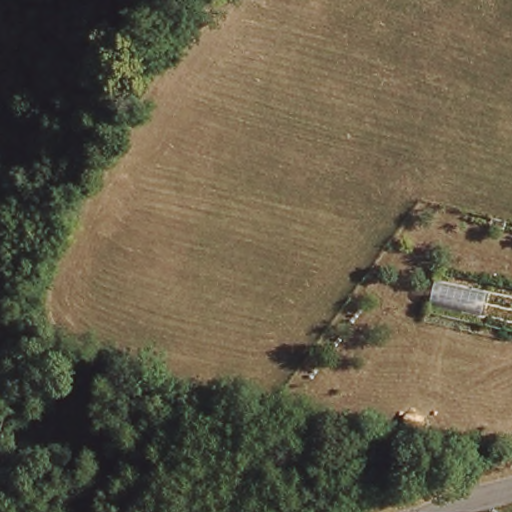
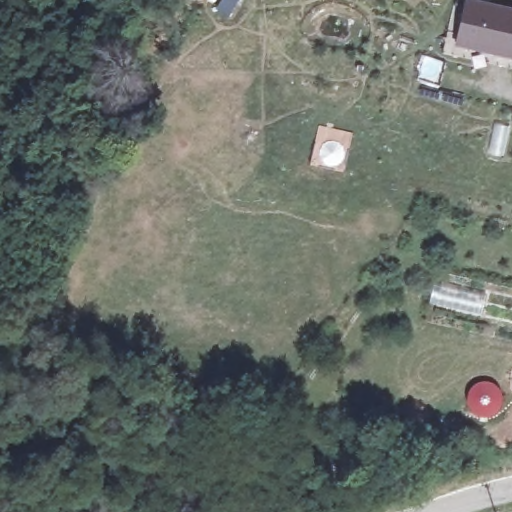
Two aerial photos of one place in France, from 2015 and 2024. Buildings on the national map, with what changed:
new [(512,11),(512,55),(458,43),(466,1),(512,11)]

